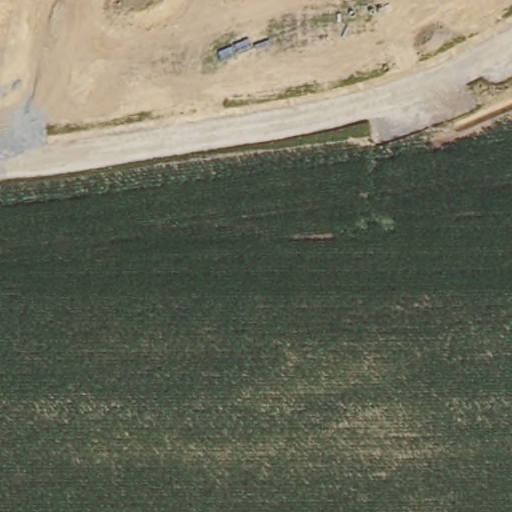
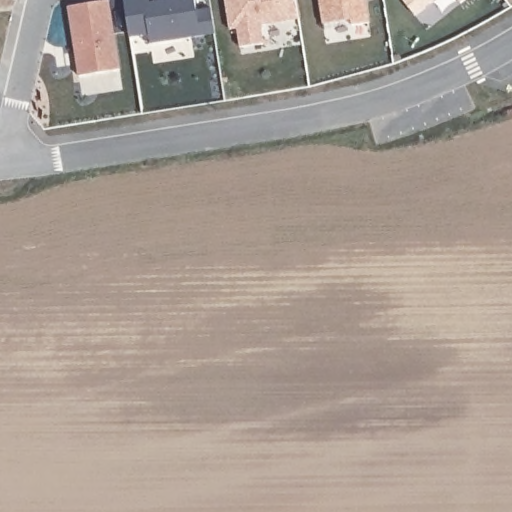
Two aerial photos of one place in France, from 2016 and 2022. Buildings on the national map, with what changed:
new [(134,0),(150,0),(150,6),(167,4),(166,0),(195,0),(197,14),(211,12),(215,38),(151,47),(150,38),(130,41),(125,1),(134,0)]
new [(298,23),(260,29),(263,48),(240,51),(237,32),(230,34),(224,0),(295,0),(298,23)]
new [(364,0),(368,27),(351,30),(350,24),(322,28),(318,0),(367,0),(364,0)]
new [(419,16),(406,0),(440,0),(419,16)]
new [(464,4),(461,0),(470,0),(464,4)]
new [(110,3),(120,73),(80,79),(69,9),(110,3)]

